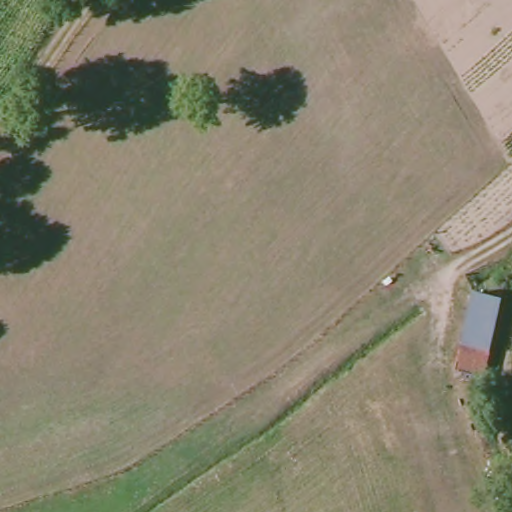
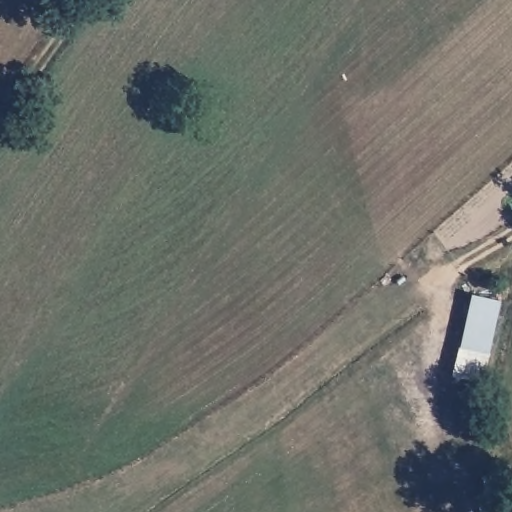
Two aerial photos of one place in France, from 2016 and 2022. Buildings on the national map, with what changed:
unchanged [(500,306),(482,385),(450,376),(470,299),(500,306)]

